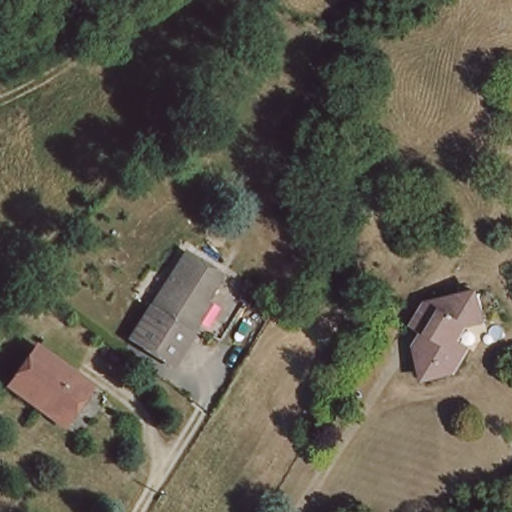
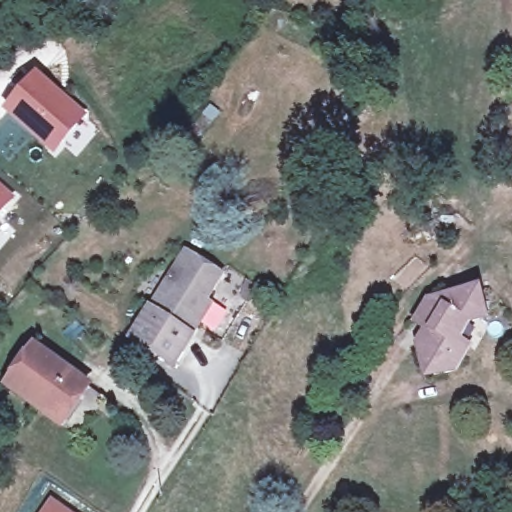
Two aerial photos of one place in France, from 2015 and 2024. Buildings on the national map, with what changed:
new [(36,72),(89,117),(56,157),(4,114),(36,72)]
new [(0,219),(0,185),(17,199),(0,219)]
unchanged [(125,330),(183,249),(218,274),(208,288),(206,300),(195,317),(165,358),(125,330)]
unchanged [(424,321),(419,315),(432,293),(473,286),(483,293),(486,315),(468,318),(457,335),(468,342),(453,367),(432,371),(418,365),(417,350),(416,333),(424,321)]
unchanged [(0,373),(24,340),(75,378),(94,391),(68,428),(49,415),(25,397),(0,380),(0,373)]

